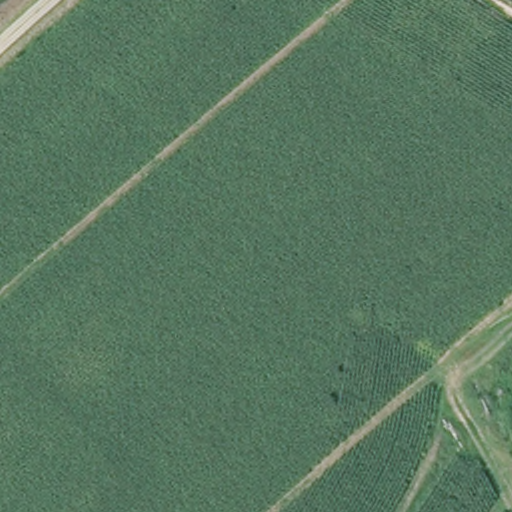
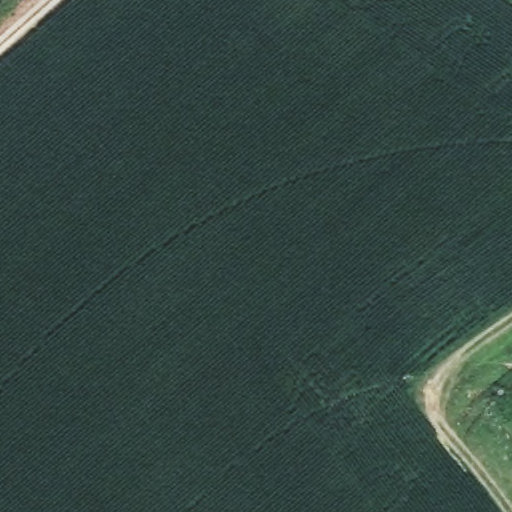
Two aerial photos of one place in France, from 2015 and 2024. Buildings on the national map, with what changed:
[]

